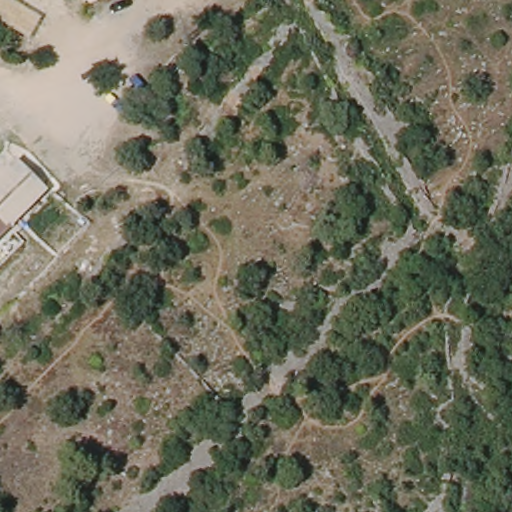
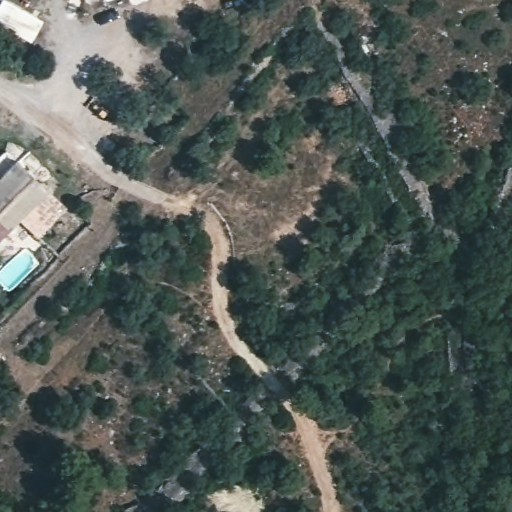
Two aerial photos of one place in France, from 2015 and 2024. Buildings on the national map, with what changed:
unchanged [(7,0),(41,20),(29,41),(0,25),(0,2),(1,0),(7,0)]
unchanged [(105,0),(108,0),(106,1),(105,0)]
unchanged [(18,244),(0,263),(0,172),(12,160),(44,191),(5,231),(18,244)]

